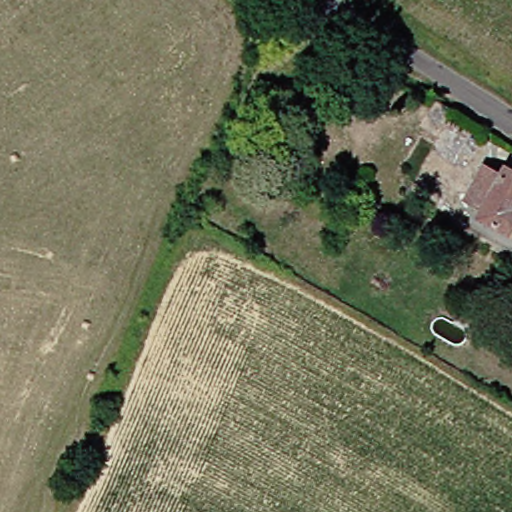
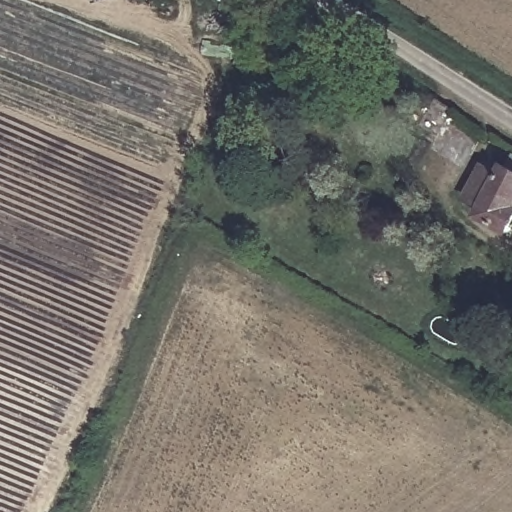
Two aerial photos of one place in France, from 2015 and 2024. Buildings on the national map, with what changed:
unchanged [(441,173),(450,157),(465,165),(456,181),(452,180),(450,185),(442,180),(445,175),(441,173)]
unchanged [(511,207),(512,208),(512,223),(503,238),(467,218),(473,209),(455,199),(472,167),(490,176),(496,165),(512,174),(512,205),(511,207)]

